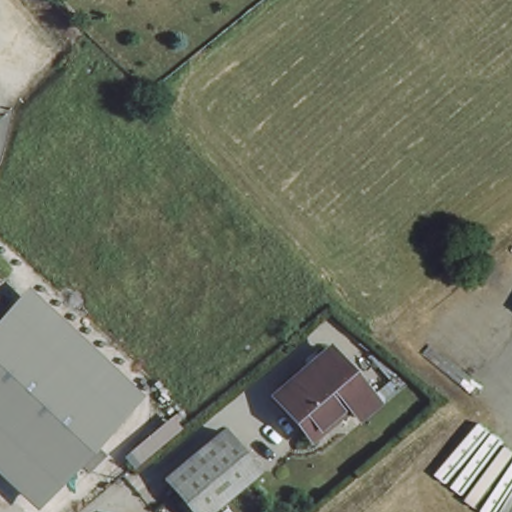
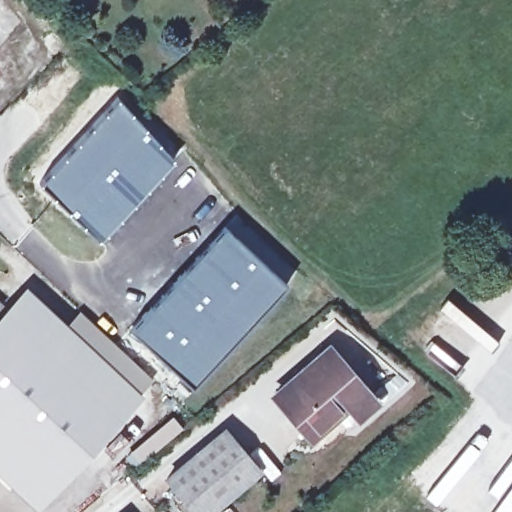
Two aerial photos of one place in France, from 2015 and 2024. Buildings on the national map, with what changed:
new [(59,156),(117,97),(175,158),(99,239),(38,181),(59,156)]
new [(161,287),(225,224),(286,282),(191,386),(127,326),(161,287)]
unchanged [(34,498),(0,468),(0,306),(21,285),(137,391),(34,498)]
unchanged [(372,395),(355,410),(343,396),(302,430),(270,390),(330,342),(372,395)]
new [(173,414),(183,427),(134,468),(125,458),(173,414)]
unchanged [(200,512),(189,512),(162,481),(220,431),(252,467),(200,512)]

